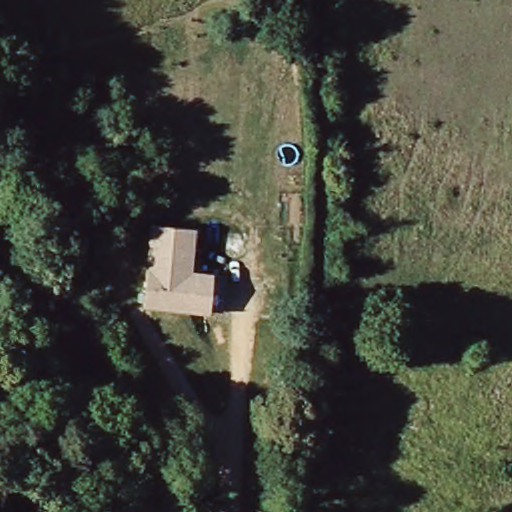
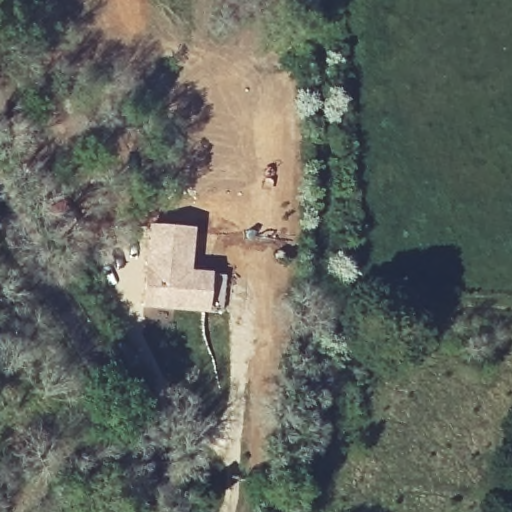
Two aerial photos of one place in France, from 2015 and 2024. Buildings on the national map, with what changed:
unchanged [(222,311),(207,311),(145,306),(151,226),(192,230),(189,272),(210,275),(225,276),(222,311)]

